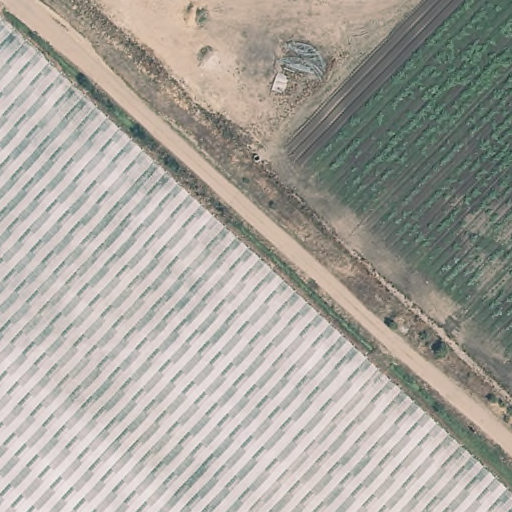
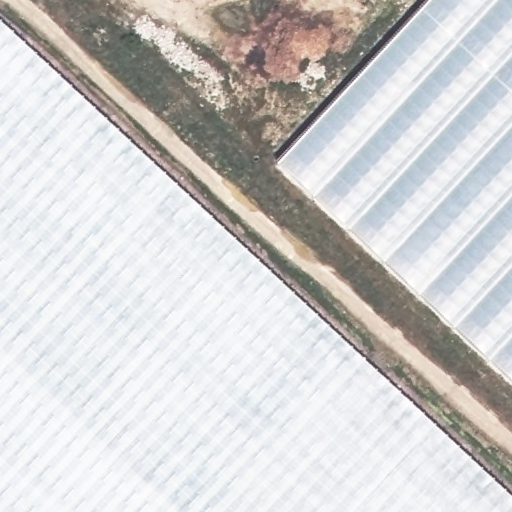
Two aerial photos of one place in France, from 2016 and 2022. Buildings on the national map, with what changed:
new [(278,164),(430,0),(512,0),(512,381),(278,164)]
unchanged [(0,512),(0,16),(512,490),(512,512),(0,512)]

